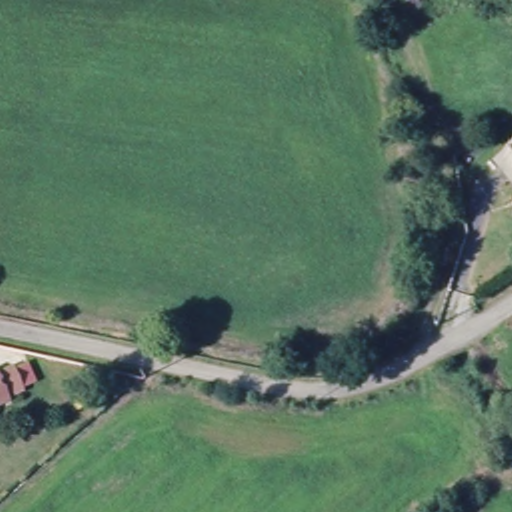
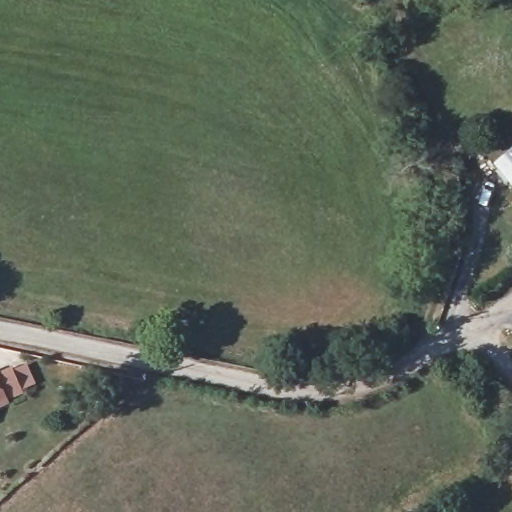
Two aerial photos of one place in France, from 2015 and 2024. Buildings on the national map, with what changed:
unchanged [(512,171),(503,160),(512,153),(512,171)]
unchanged [(4,372),(16,397),(0,405),(0,373),(4,372)]

